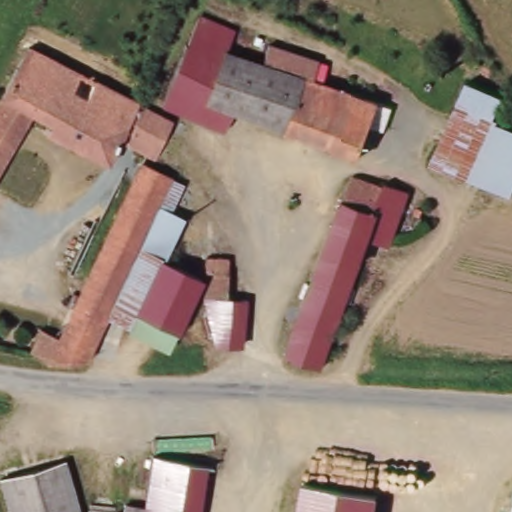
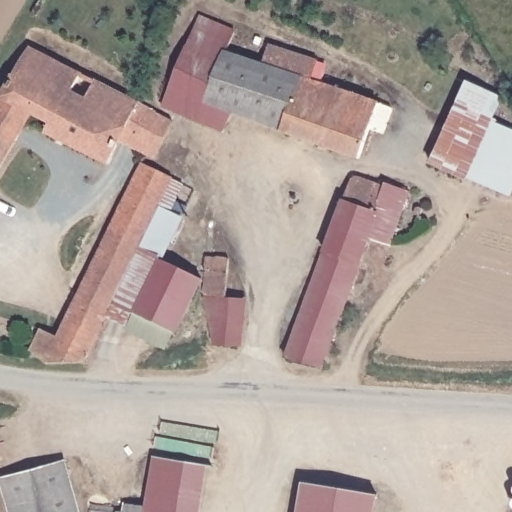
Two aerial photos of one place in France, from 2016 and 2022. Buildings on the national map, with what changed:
unchanged [(314,60),(307,77),(374,104),(354,157),(231,114),(222,135),(158,111),(192,18),(230,31),(224,50),(255,61),(264,40),(314,60)]
unchanged [(145,111),(168,122),(151,158),(144,155),(117,142),(106,163),(42,133),(46,125),(26,115),(0,102),(0,82),(20,46),(74,75),(145,111)]
unchanged [(504,96),(493,121),(468,177),(452,171),(429,161),(466,79),(490,89),(504,96)]
unchanged [(0,139),(0,102),(26,115),(11,144),(0,139)]
unchanged [(512,129),(512,197),(468,177),(493,121),(512,129)]
unchanged [(0,164),(0,139),(11,144),(0,164)]
unchanged [(166,260),(139,247),(114,300),(86,361),(81,361),(58,362),(45,363),(46,357),(31,350),(41,327),(58,335),(96,254),(108,230),(115,215),(139,164),(140,162),(145,165),(159,172),(168,176),(170,177),(188,185),(176,211),(187,216),(181,228),(166,260)]
unchanged [(325,366),(286,356),(350,175),(380,185),(381,181),(412,190),(404,215),(384,273),(360,265),(327,357),(325,366)]
unchanged [(179,331),(114,300),(139,247),(166,260),(194,274),(203,279),(197,293),(179,331)]
unchanged [(204,287),(208,258),(231,258),(225,297),(249,300),(244,345),(215,343),(204,287)]
unchanged [(207,468),(200,512),(122,512),(123,503),(144,507),(152,459),(207,468)]
unchanged [(0,480),(60,461),(75,512),(8,512),(0,487),(0,480)]
unchanged [(377,497),(374,512),(296,512),(300,484),(377,497)]

